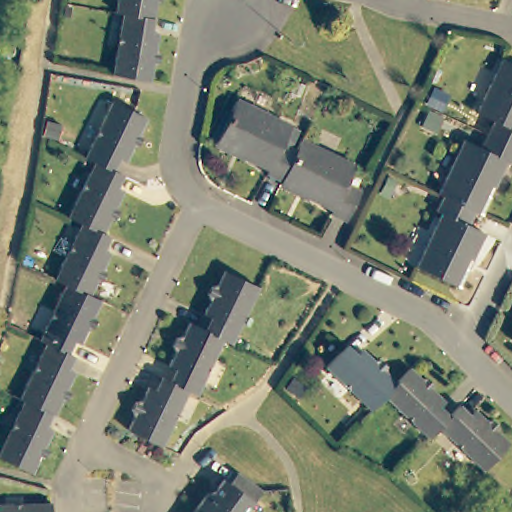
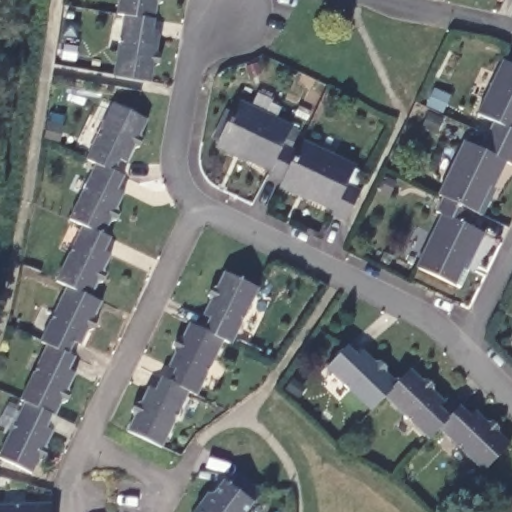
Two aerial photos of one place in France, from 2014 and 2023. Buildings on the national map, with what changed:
unchanged [(160,5),(155,5),(152,19),(121,14),(117,13),(119,0),(160,0),(160,5)]
unchanged [(152,19),(151,31),(159,32),(155,48),(159,52),(157,62),(152,62),(149,81),(121,76),(111,74),(121,14),(152,19)]
unchanged [(480,115),(508,62),(512,63),(512,143),(490,133),(495,122),(480,115)]
unchanged [(94,157),(85,153),(87,150),(112,94),(145,111),(140,124),(141,131),(134,144),(127,146),(122,156),(116,153),(112,162),(112,165),(94,157)]
unchanged [(266,174),(271,162),(241,147),(236,156),(216,147),(236,103),(292,128),(285,144),(296,150),(281,182),(266,174)]
unchanged [(442,190),(468,140),(483,146),(490,133),(512,143),(512,163),(507,160),(495,186),(489,186),(487,191),(490,195),(483,210),(476,206),(445,192),(442,190)]
unchanged [(301,140),(356,168),(348,183),(360,189),(346,219),(331,212),(335,201),(300,184),(296,190),(281,182),(296,150),(301,140)]
unchanged [(120,170),(115,182),(121,186),(115,198),(119,206),(115,214),(105,218),(102,227),(82,219),(68,212),(94,157),(112,165),(120,170)]
unchanged [(467,225),(481,231),(467,258),(463,257),(460,265),(466,269),(457,286),(416,264),(442,212),(436,208),(445,192),(476,206),(467,225)]
unchanged [(102,227),(108,230),(102,243),(107,246),(101,263),(105,272),(100,282),(91,284),(88,289),(86,295),(65,285),(53,280),(56,275),(82,219),(102,227)]
unchanged [(203,328),(207,319),(199,314),(205,303),(202,296),(208,283),(216,281),(222,269),(256,284),(230,342),(230,343),(222,339),(202,329),(203,328)]
unchanged [(86,295),(97,300),(92,315),(94,323),(91,331),(82,334),(77,345),(69,341),(65,349),(64,351),(45,343),(40,339),(40,337),(65,285),(86,295)]
unchanged [(187,396),(168,385),(169,384),(173,372),(166,367),(172,354),(170,348),(177,336),(181,336),(187,323),(202,329),(222,339),(195,397),(195,398),(187,396)]
unchanged [(64,351),(72,355),(67,368),(72,370),(67,383),(71,388),(67,397),(58,400),(53,412),(27,399),(22,396),(45,343),(64,351)]
unchanged [(383,394),(369,406),(327,367),(347,347),(357,355),(364,350),(373,360),(378,359),(386,366),(385,372),(395,380),(410,366),(417,373),(392,400),(383,394)]
unchanged [(436,424),(425,433),(392,400),(417,373),(422,377),(426,375),(432,382),(431,388),(444,400),(437,408),(445,414),(457,404),(466,410),(444,433),(436,424)]
unchanged [(187,396),(161,447),(129,432),(134,421),(130,414),(134,405),(143,402),(147,392),(154,394),(160,381),(168,385),(187,396)]
unchanged [(52,413),(49,422),(54,428),(50,439),(52,446),(46,457),(40,458),(32,473),(0,457),(27,401),(27,399),(53,412),(52,413)]
unchanged [(466,410),(482,423),(487,419),(496,428),(493,432),(502,443),(479,467),(444,433),(466,410)]
unchanged [(214,491),(221,481),(227,484),(236,474),(259,489),(243,512),(194,512),(207,493),(214,491)]
unchanged [(27,502),(49,501),(50,512),(0,512),(0,504),(27,502)]

